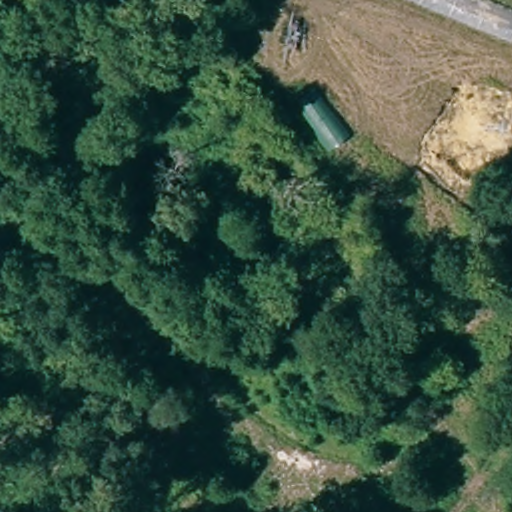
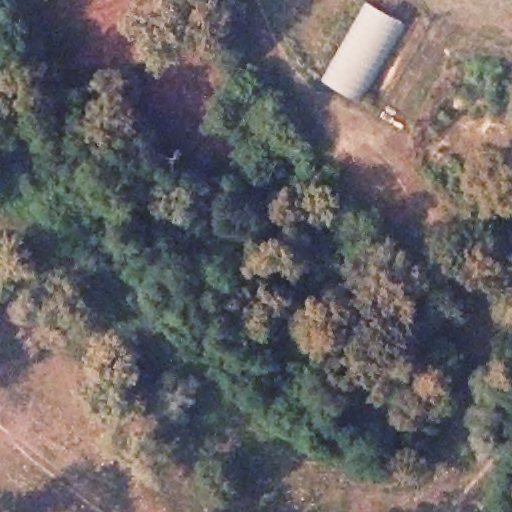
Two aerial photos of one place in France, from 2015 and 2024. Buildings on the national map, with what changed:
new [(363,97),(358,100),(326,82),(370,5),(401,22),(391,41),(363,97)]

